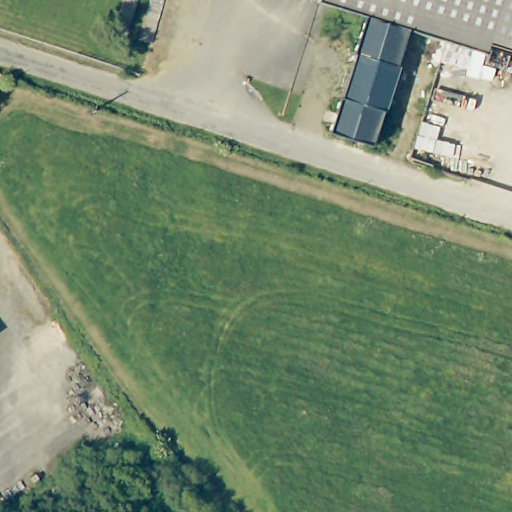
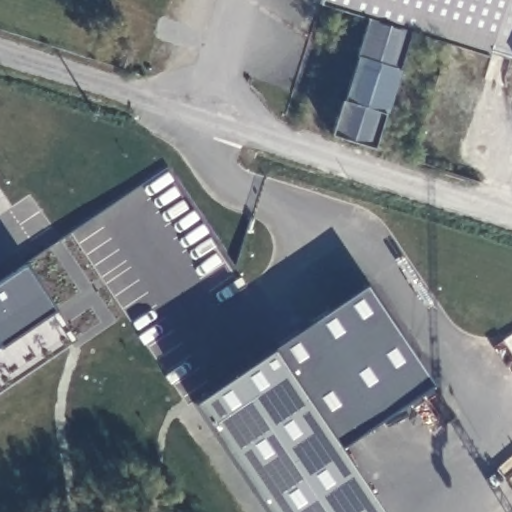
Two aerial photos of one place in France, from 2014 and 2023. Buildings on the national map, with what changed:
unchanged [(492,60),(414,34),(371,20),(323,5),(325,0),(511,0),(496,49),(492,60)]
unchanged [(511,0),(512,0),(512,54),(496,49),(511,0)]
unchanged [(414,34),(402,71),(358,57),(371,20),(414,34)]
unchanged [(402,71),(388,115),(345,100),(358,57),(402,71)]
unchanged [(388,115),(377,150),(333,136),(345,100),(388,115)]
new [(77,344),(0,397),(0,270),(19,257),(77,344)]
new [(348,258),(433,386),(337,445),(382,512),(269,512),(175,374),(348,258)]

